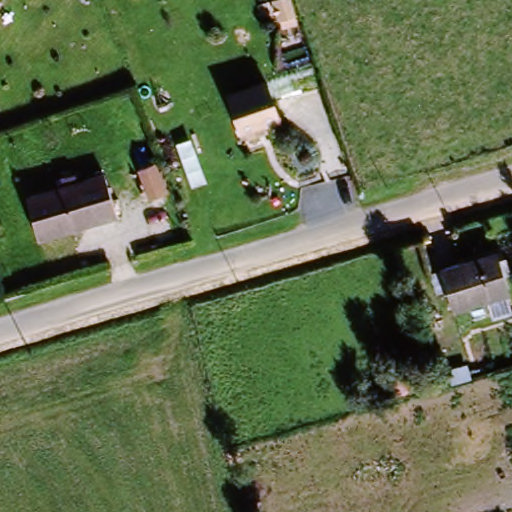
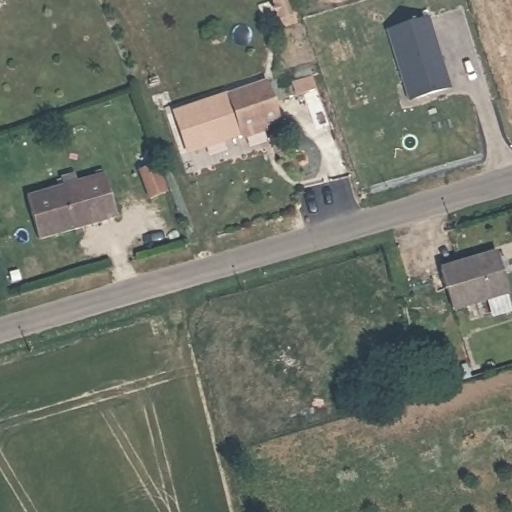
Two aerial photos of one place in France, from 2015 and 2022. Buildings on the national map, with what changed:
new [(278,0),(289,0),(300,34),(285,38),(273,1),(278,0)]
new [(427,16),(451,88),(410,101),(385,31),(427,16)]
new [(312,77),(316,89),(299,94),(295,83),(312,77)]
new [(239,138),(186,157),(170,111),(223,92),(261,79),(275,119),(260,125),(262,130),(239,138)]
demolished [(237,133),(223,92),(261,79),(275,119),(260,125),(237,133)]
new [(154,166),(165,197),(149,202),(138,171),(154,166)]
unchanged [(84,228),(70,184),(101,175),(115,218),(84,228)]
unchanged [(40,244),(23,200),(70,184),(84,228),(40,244)]
unchanged [(470,306),(455,311),(442,267),(501,248),(505,262),(512,260),(512,276),(509,277),(512,289),(512,292),(507,293),(512,309),(493,315),(488,300),(470,306)]

